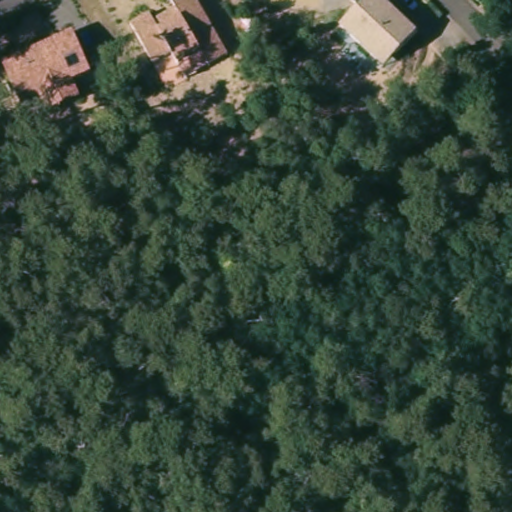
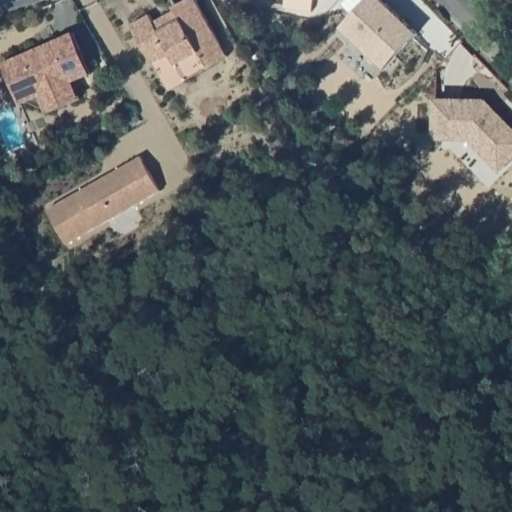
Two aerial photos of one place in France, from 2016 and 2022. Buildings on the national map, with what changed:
unchanged [(151,13),(155,20),(175,10),(173,6),(184,0),(195,0),(227,57),(209,67),(185,79),(177,65),(171,50),(152,63),(132,22),(151,13)]
unchanged [(382,0),(416,33),(385,67),(339,25),(365,0),(382,0)]
unchanged [(95,66),(81,71),(88,90),(48,105),(42,91),(22,97),(5,55),(79,25),(95,66)]
new [(492,163),(470,140),(435,140),(435,103),(486,103),(490,107),(497,115),(512,130),(512,161),(501,172),(492,163)]
new [(142,159),(162,194),(84,237),(69,246),(50,212),(65,204),(142,159)]

